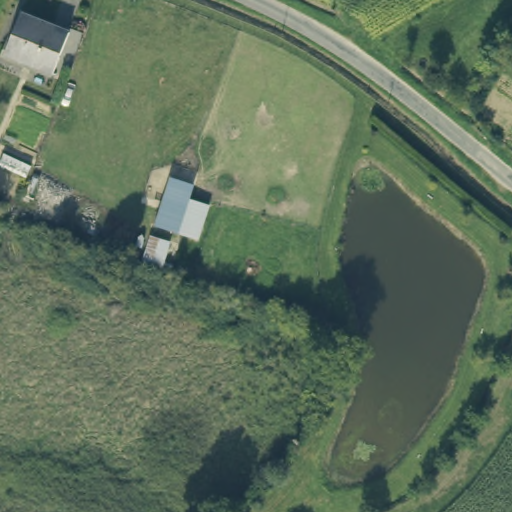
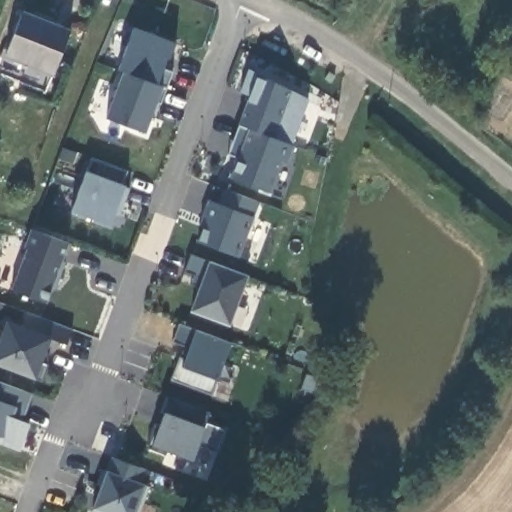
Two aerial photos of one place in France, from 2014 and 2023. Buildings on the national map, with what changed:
unchanged [(69,29),(51,70),(5,51),(20,11),(69,29)]
new [(157,86),(163,88),(145,134),(106,119),(124,71),(120,70),(135,28),(174,44),(157,86)]
new [(308,100),(291,145),(238,125),(249,96),(240,93),(249,70),(308,100)]
new [(229,177),(236,160),(227,156),(238,125),(291,145),(294,147),(287,166),(282,164),(270,194),(229,177)]
new [(115,215),(110,227),(71,212),(91,159),(128,172),(122,187),(130,190),(123,207),(120,217),(115,215)]
demolished [(175,231),(153,222),(171,176),(194,185),(188,198),(175,231)]
new [(198,241),(204,228),(199,226),(210,200),(217,203),(222,189),(259,202),(238,258),(198,241)]
new [(26,251),(24,250),(31,231),(68,245),(61,263),(65,264),(55,292),(51,291),(46,305),(11,292),(26,251)]
new [(190,312),(198,289),(190,286),(194,276),(186,272),(191,256),(208,262),(248,278),(230,327),(190,312)]
new [(50,338),(34,380),(0,367),(0,332),(3,333),(6,322),(21,327),(26,314),(71,330),(66,345),(50,338)]
new [(180,358),(184,348),(172,343),(179,325),(231,344),(211,397),(170,381),(179,357),(180,358)]
new [(0,437),(1,436),(0,436),(0,383),(34,395),(22,423),(29,426),(21,452),(0,445),(0,437)]
new [(218,450),(199,443),(192,462),(166,452),(165,456),(146,449),(154,425),(157,427),(163,414),(161,414),(166,399),(208,414),(201,425),(205,427),(224,431),(218,450)]
new [(106,471),(111,459),(143,470),(138,483),(146,486),(135,512),(99,512),(93,510),(106,471)]

